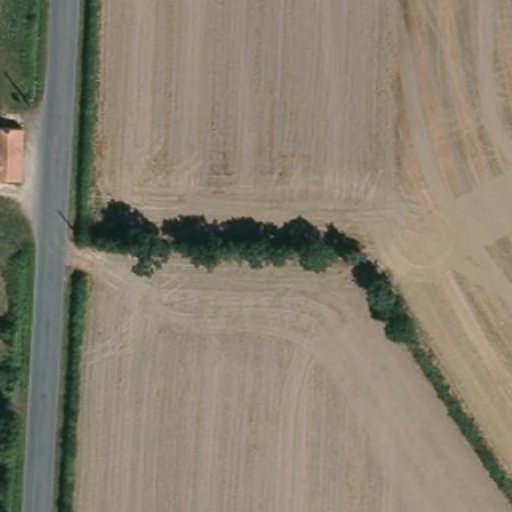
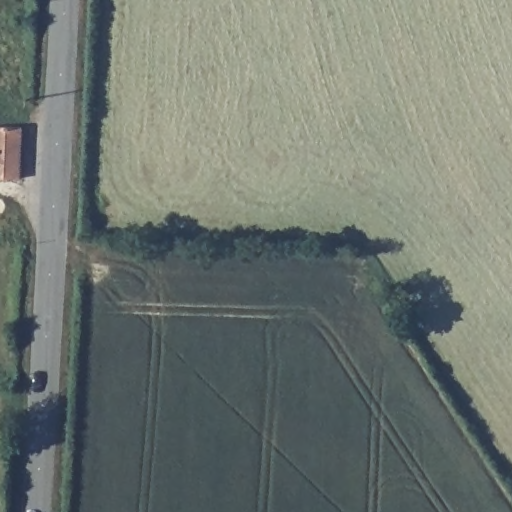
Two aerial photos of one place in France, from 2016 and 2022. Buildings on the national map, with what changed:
unchanged [(19,126),(18,179),(0,179),(0,126),(19,126)]

